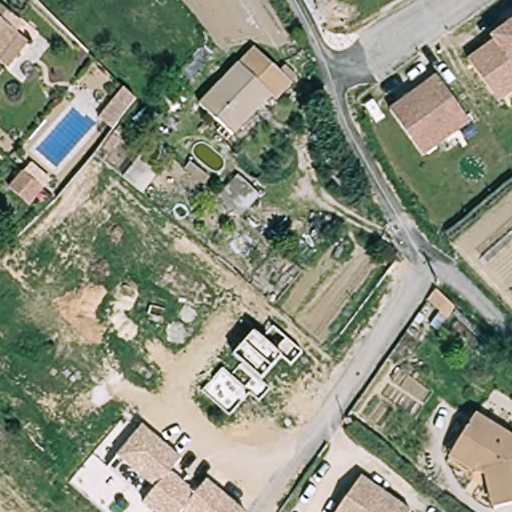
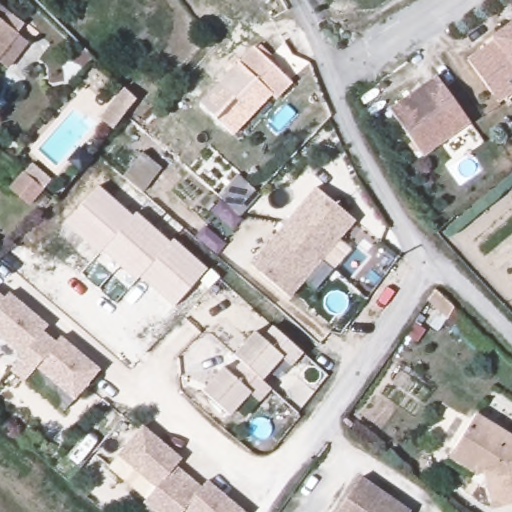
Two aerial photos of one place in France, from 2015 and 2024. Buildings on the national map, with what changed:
unchanged [(5,10),(0,16),(0,7),(5,10)]
unchanged [(0,63),(0,23),(15,35),(23,41),(5,66),(0,63)]
unchanged [(495,91),(472,56),(500,38),(497,34),(512,24),(512,90),(500,98),(495,91)]
unchanged [(285,86),(270,103),(266,98),(237,126),(210,101),(253,56),(285,86)]
unchanged [(422,154),(391,108),(407,97),(425,86),(440,76),(471,122),(422,154)]
new [(122,88),(136,99),(112,129),(99,118),(122,88)]
unchanged [(160,172),(141,193),(124,178),(143,157),(160,172)]
unchanged [(30,199),(9,181),(22,165),(42,184),(30,199)]
new [(240,218),(218,199),(238,177),(260,196),(240,218)]
new [(99,185),(132,216),(136,212),(170,242),(174,238),(207,269),(173,307),(140,277),(136,282),(102,251),(99,254),(65,223),(99,185)]
new [(315,188),(355,222),(290,299),(250,265),(315,188)]
new [(3,299),(8,293),(47,326),(43,332),(55,342),(60,336),(100,370),(74,402),(35,370),(23,382),(9,371),(20,359),(0,340),(0,296),(3,299)]
new [(297,366),(291,361),(273,385),(277,390),(265,402),(260,397),(238,419),(233,416),(213,395),(232,373),(238,378),(250,365),(243,359),(265,336),(272,342),(282,332),(308,353),(297,366)]
unchanged [(462,434),(481,408),(512,430),(512,496),(495,499),(491,473),(483,466),(457,441),(462,434)]
unchanged [(142,504),(155,489),(116,456),(142,426),(183,460),(172,472),(198,493),(208,482),(245,512),(152,512),(142,504)]
unchanged [(358,481),(383,498),(374,512),(338,512),(358,481)]
unchanged [(383,498),(405,512),(374,512),(383,498)]

